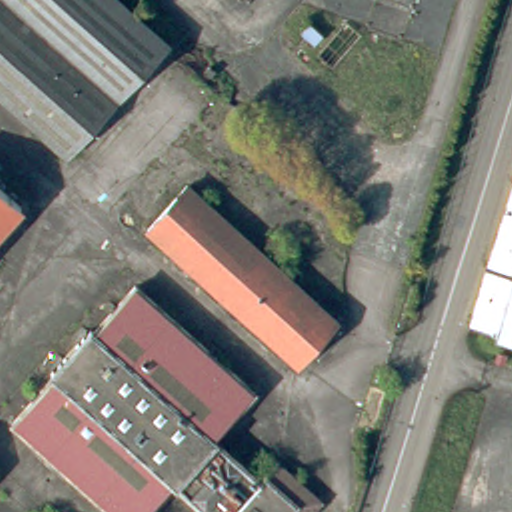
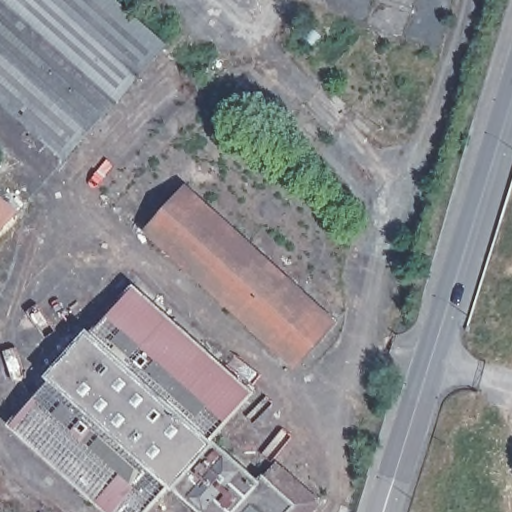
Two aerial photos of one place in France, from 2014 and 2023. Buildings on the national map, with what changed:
unchanged [(61,161),(0,106),(0,0),(109,0),(162,47),(61,161)]
unchanged [(338,319),(297,365),(147,230),(188,184),(338,319)]
unchanged [(20,207),(0,230),(0,189),(20,207)]
demolished [(512,189),(512,337),(470,324),(512,189)]
unchanged [(142,512),(120,512),(18,422),(58,377),(53,372),(91,330),(97,335),(137,290),(252,391),(210,438),(260,482),(279,461),(323,500),(312,512),(207,512),(172,481),(142,512)]

